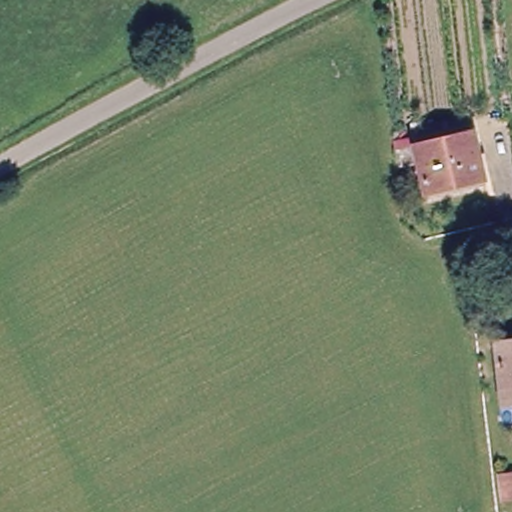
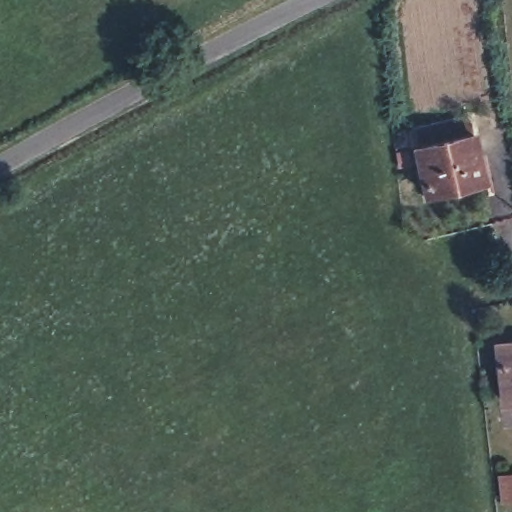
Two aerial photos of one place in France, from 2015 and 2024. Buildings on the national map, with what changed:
unchanged [(406,132),(470,115),(475,136),(411,150),(406,132)]
unchanged [(488,183),(425,200),(411,150),(475,136),(488,183)]
unchanged [(512,399),(495,398),(492,341),(512,341),(512,399)]

